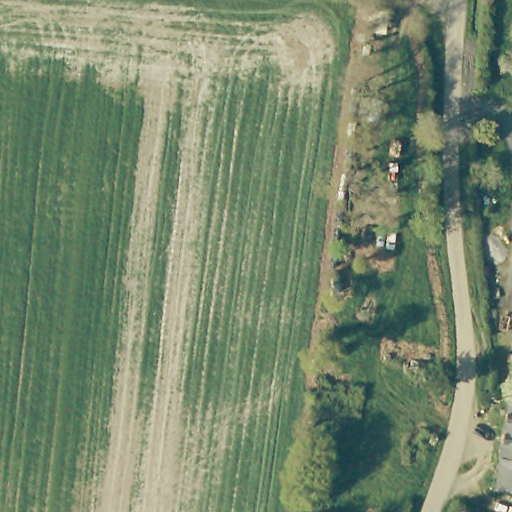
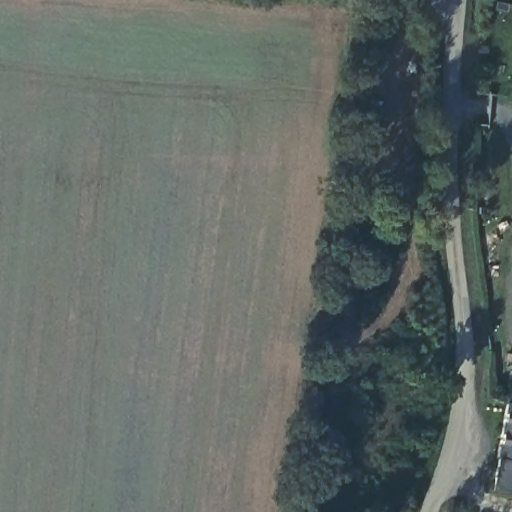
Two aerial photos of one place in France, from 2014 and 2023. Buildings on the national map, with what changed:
unchanged [(507,403),(512,404),(512,433),(503,431),(507,403)]
unchanged [(500,454),(503,431),(512,433),(512,456),(500,454)]
unchanged [(497,489),(499,472),(501,458),(500,458),(500,454),(512,456),(512,492),(497,489)]

